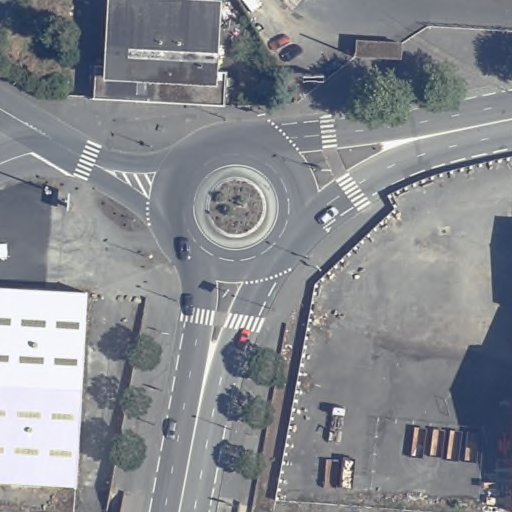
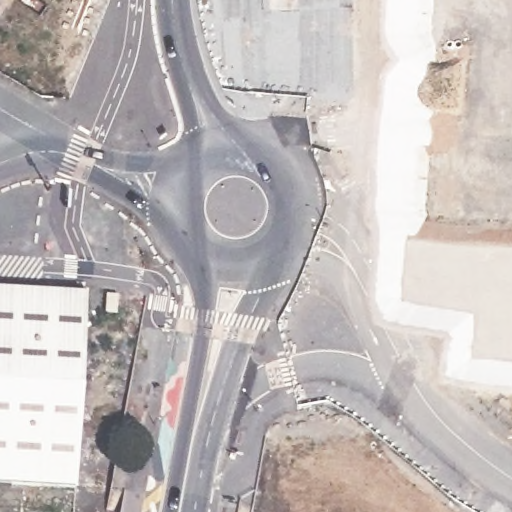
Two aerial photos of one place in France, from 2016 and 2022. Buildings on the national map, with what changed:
demolished [(93,98),(96,70),(108,71),(112,38),(129,40),(132,1),(202,5),(200,42),(220,44),(218,75),(233,76),(230,106),(93,98)]
unchanged [(360,60),(360,45),(397,47),(397,63),(360,60)]
unchanged [(0,486),(0,285),(88,290),(78,491),(0,486)]

